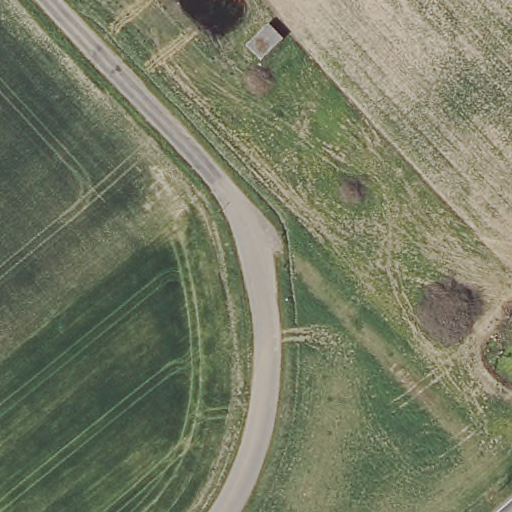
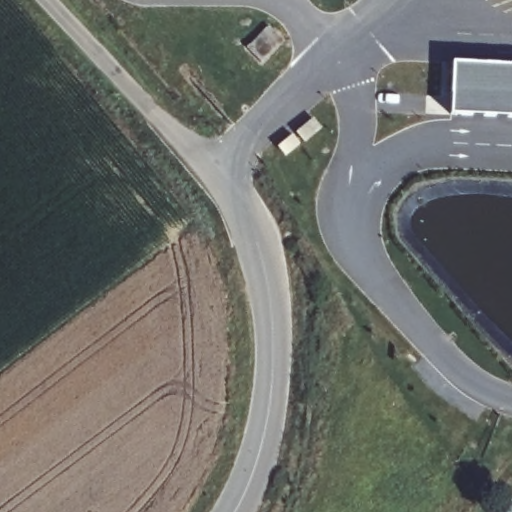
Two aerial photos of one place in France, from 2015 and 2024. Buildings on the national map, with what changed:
unchanged [(293,42),(280,66),(259,41),(275,26),(293,42)]
new [(450,115),(453,61),(512,64),(512,118),(450,115)]
new [(314,118),(322,128),(304,142),(296,133),(314,118)]
new [(300,143),(285,156),(278,147),(293,135),(300,143)]

